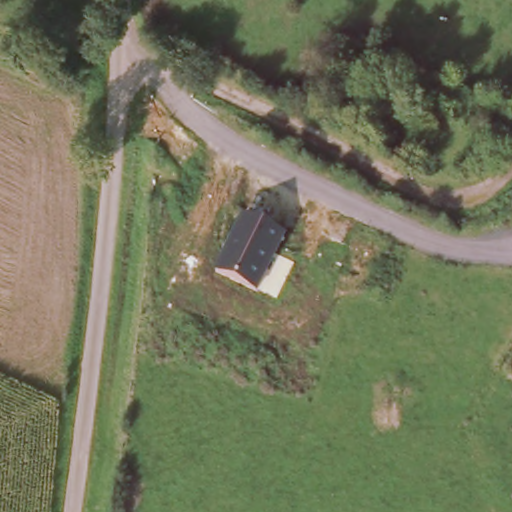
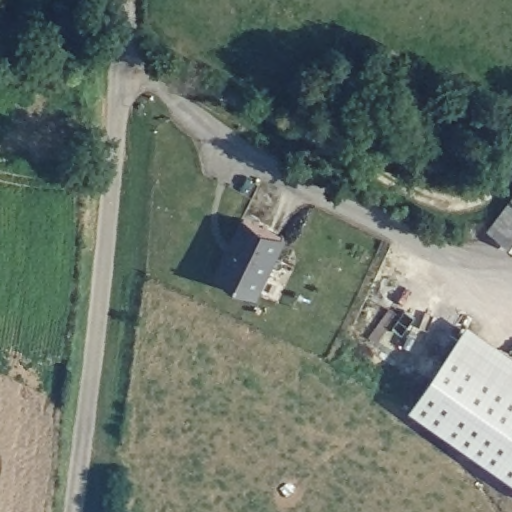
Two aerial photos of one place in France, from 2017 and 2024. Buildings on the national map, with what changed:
new [(512,196),(512,199),(510,198),(512,196)]
new [(512,199),(512,250),(510,248),(486,230),(501,210),(510,198),(512,199)]
unchanged [(289,236),(257,298),(210,275),(242,214),(289,236)]
new [(469,321),(512,352),(512,474),(410,404),(469,321)]

